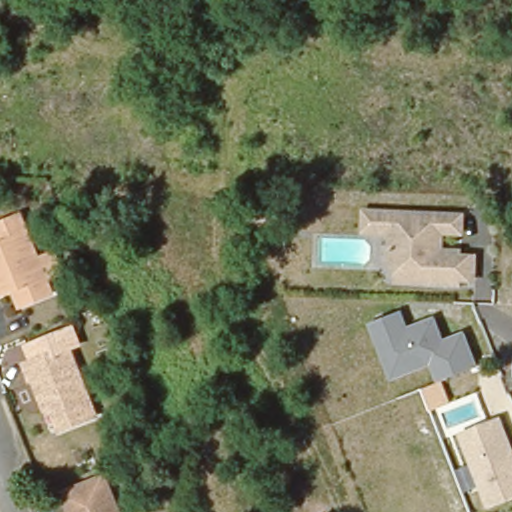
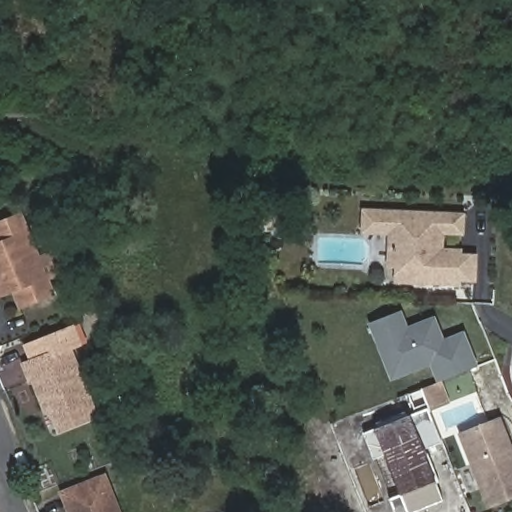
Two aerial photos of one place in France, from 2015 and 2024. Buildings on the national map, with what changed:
unchanged [(445,233),(445,246),(463,247),(463,253),(478,254),(478,281),(462,280),(462,286),(396,283),(396,269),(387,269),(389,236),(362,234),(363,207),(466,211),(465,235),(445,233)]
unchanged [(0,294),(0,245),(5,243),(0,232),(0,225),(24,214),(54,293),(31,302),(23,305),(16,288),(0,294)]
unchanged [(438,383),(431,364),(390,380),(367,323),(404,309),(410,325),(437,315),(446,337),(466,330),(479,365),(438,383)]
unchanged [(40,403),(32,383),(30,384),(23,365),(31,362),(26,347),(70,329),(76,345),(67,349),(94,418),(57,432),(49,411),(44,413),(40,403)]
new [(410,414),(428,407),(426,404),(414,408),(408,394),(422,389),(438,383),(442,381),(451,402),(430,411),(441,441),(424,448),(436,481),(443,500),(414,512),(394,512),(389,497),(399,493),(385,455),(373,459),(363,432),(374,427),(410,414)]
unchanged [(487,507),(457,431),(501,415),(512,442),(512,498),(487,507)]
unchanged [(100,467),(118,512),(70,512),(58,483),(100,467)]

